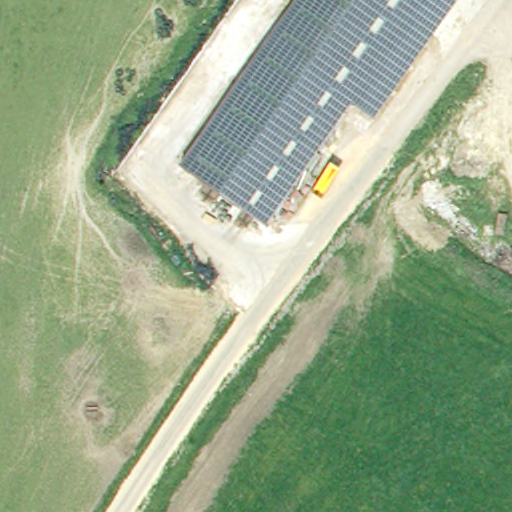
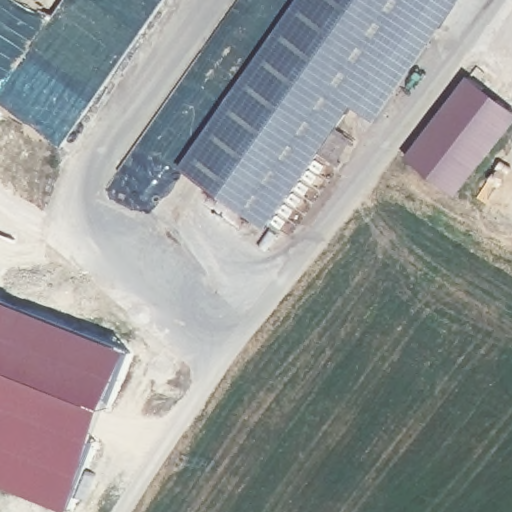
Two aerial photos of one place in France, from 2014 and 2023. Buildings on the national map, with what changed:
unchanged [(353,105),(270,47),(303,0),(431,0),(356,107),(353,105)]
unchanged [(456,0),(375,118),(356,107),(431,0),(456,0)]
unchanged [(353,105),(267,227),(180,167),(270,47),(353,105)]
new [(512,125),(457,195),(407,157),(469,75),(512,108),(512,125)]
new [(130,356),(73,512),(59,512),(0,490),(0,305),(130,356)]

